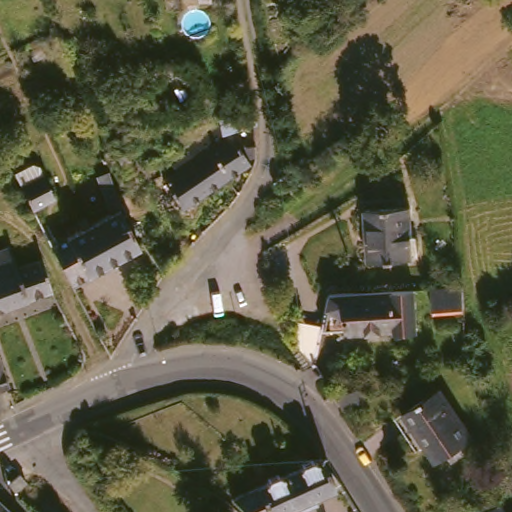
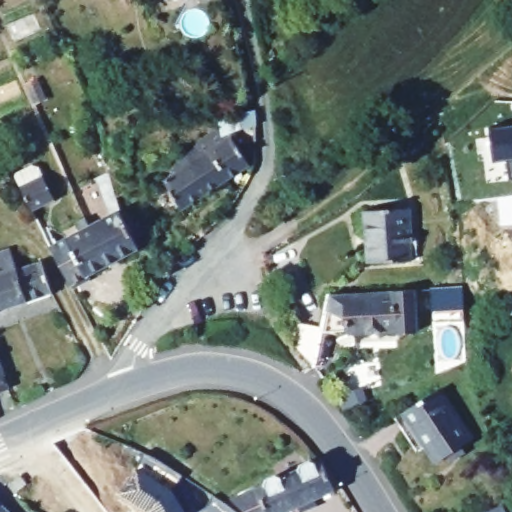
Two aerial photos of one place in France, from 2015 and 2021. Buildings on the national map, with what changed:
unchanged [(230,124),(229,117),(242,113),(241,104),(263,97),(264,107),(266,124),(251,128),(233,133),(235,138),(242,136),(248,143),(253,141),(256,147),(265,145),(265,159),(259,162),(240,174),(236,176),(189,205),(183,194),(175,198),(167,185),(174,181),(173,178),(188,168),(207,156),(204,150),(198,154),(194,147),(212,135),(223,128),(230,124)]
new [(507,159),(495,161),(489,128),(512,125),(512,179),(509,179),(507,159)]
unchanged [(46,168),(53,182),(57,192),(36,203),(23,180),(46,168)]
unchanged [(381,205),(409,203),(411,231),(412,243),(412,246),(413,249),(413,255),(391,256),(367,257),(367,253),(366,237),(366,229),(365,206),(381,205)]
unchanged [(120,211),(127,224),(140,246),(141,250),(112,266),(92,227),(120,211)]
unchanged [(92,227),(112,266),(75,287),(54,249),(92,227)]
unchanged [(10,252),(14,250),(21,270),(35,265),(44,263),(56,294),(0,313),(0,255),(10,252)]
unchanged [(351,288),(387,286),(413,285),(414,326),(370,327),(370,325),(341,325),(351,288)]
unchanged [(467,286),(469,311),(436,312),(435,288),(467,286)]
unchanged [(313,361),(292,341),(297,321),(321,325),(313,361)]
unchanged [(1,339),(17,385),(0,390),(0,339),(1,339)]
unchanged [(435,394),(444,389),(476,439),(440,461),(408,412),(435,394)]
unchanged [(318,460),(317,456),(331,450),(332,453),(338,451),(353,482),(332,491),(334,496),(326,500),(324,494),(315,499),(312,500),(299,468),(318,460)]
unchanged [(283,476),(282,473),(297,466),(298,466),(299,468),(312,500),(297,507),(299,512),(290,512),(290,511),(288,512),(272,512),(250,490),(283,476)]
unchanged [(15,512),(0,512),(0,497),(15,512)]
unchanged [(507,504),(510,512),(490,512),(507,504)]

